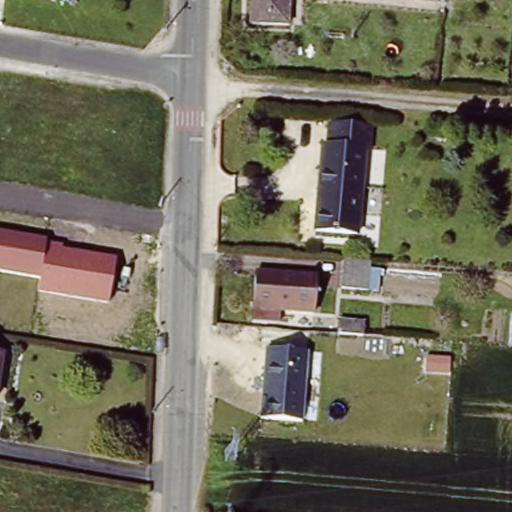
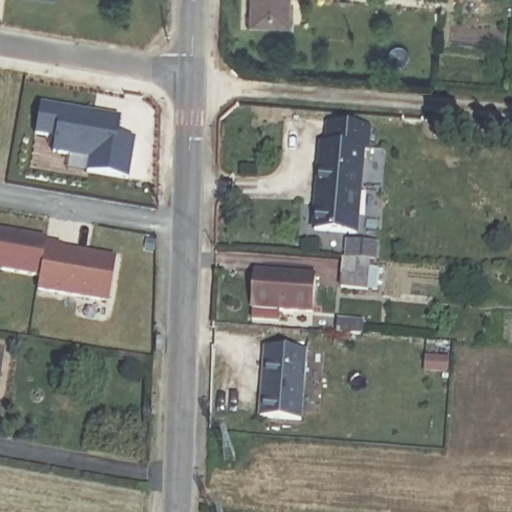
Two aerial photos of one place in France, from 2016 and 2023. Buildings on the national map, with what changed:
unchanged [(251,0),(289,0),(287,25),(250,23),(251,0)]
new [(40,102),(121,117),(120,137),(134,139),(127,179),(87,171),(90,158),(52,152),(55,138),(35,133),(40,102)]
unchanged [(314,191),(317,150),(322,150),(324,131),(365,134),(365,154),(360,154),(354,238),(310,235),(314,191)]
unchanged [(64,242),(63,249),(117,258),(109,304),(37,291),(40,279),(0,271),(0,230),(64,242)]
unchanged [(371,260),(369,289),(342,286),(344,258),(371,260)]
unchanged [(251,272),(312,276),(309,312),(277,309),(276,322),(247,320),(251,272)]
unchanged [(339,319),(365,321),(364,336),(337,334),(339,319)]
unchanged [(308,350),(304,422),(260,420),(264,347),(308,350)]
unchanged [(3,356),(0,375),(0,356),(3,356)]

